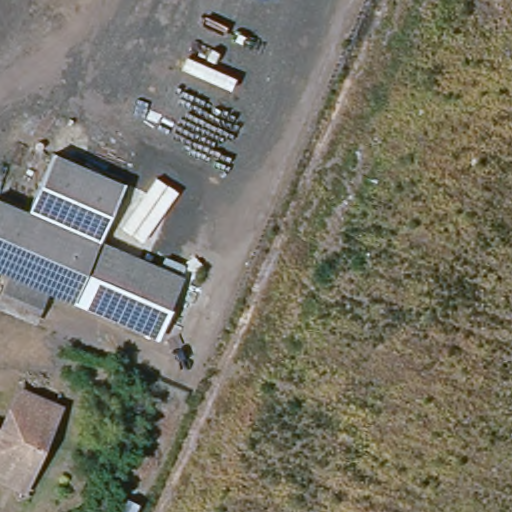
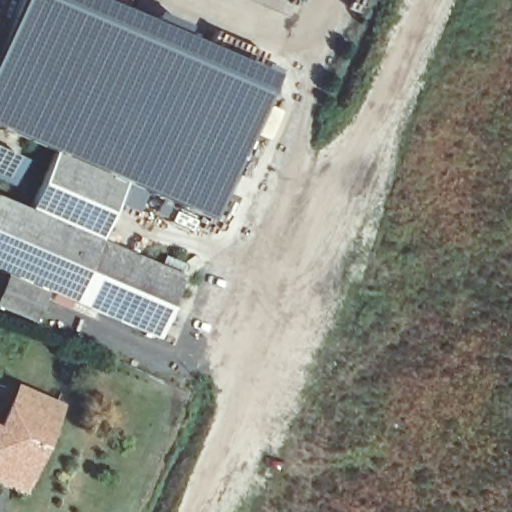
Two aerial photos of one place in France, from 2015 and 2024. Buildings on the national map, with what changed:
new [(125,179),(52,147),(51,150),(0,129),(0,40),(17,0),(98,0),(271,74),(208,219),(125,179)]
new [(20,156),(17,164),(23,167),(13,186),(0,181),(0,147),(20,156)]
unchanged [(27,203),(52,147),(125,179),(103,233),(27,203)]
unchanged [(0,279),(0,194),(27,203),(103,233),(187,267),(157,338),(0,279)]
unchanged [(0,483),(0,401),(23,410),(30,391),(65,407),(26,494),(0,483)]

